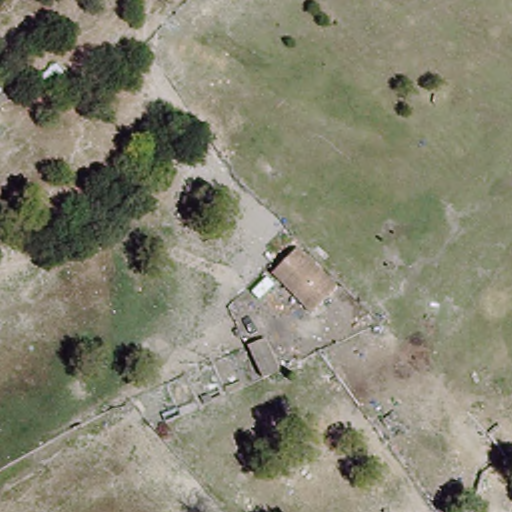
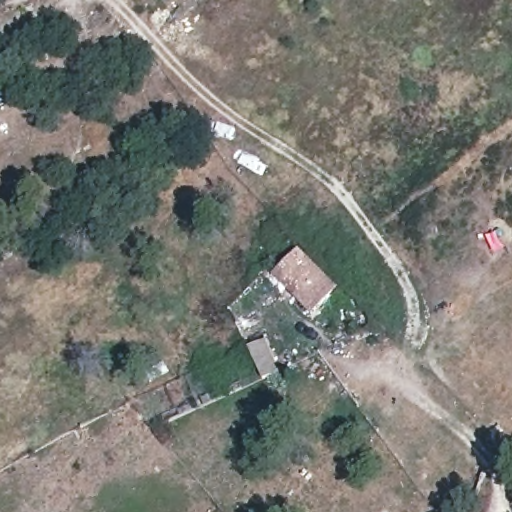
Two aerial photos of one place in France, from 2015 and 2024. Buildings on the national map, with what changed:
unchanged [(0,109),(0,83),(12,104),(0,109)]
unchanged [(309,310),(272,270),(297,247),(335,287),(309,310)]
unchanged [(270,393),(250,366),(263,357),(282,384),(270,393)]

